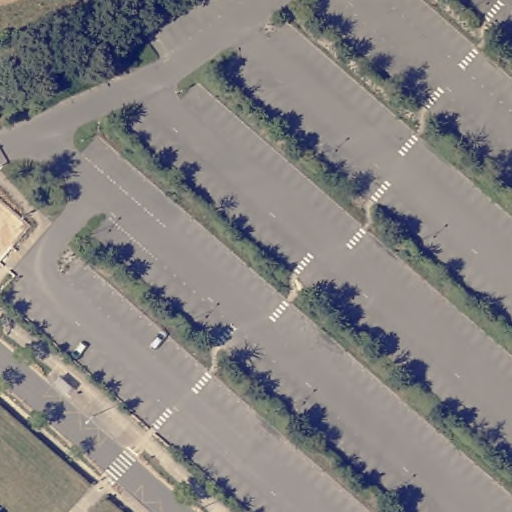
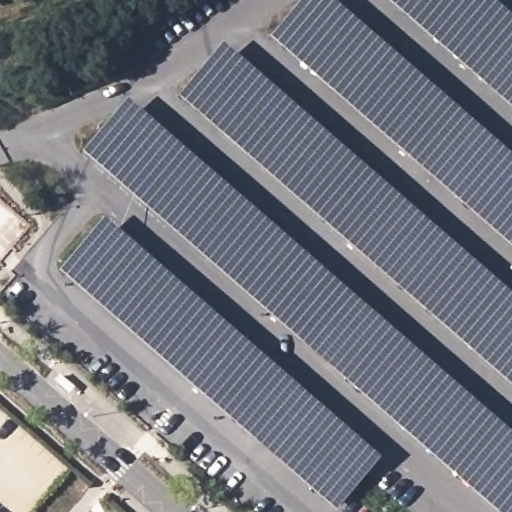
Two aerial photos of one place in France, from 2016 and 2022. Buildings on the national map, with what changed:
new [(512,158),(512,249),(270,38),(304,0),(330,0),(512,158)]
new [(512,17),(512,107),(389,0),(492,0),(512,17)]
new [(512,297),(512,387),(178,97),(224,46),(512,297)]
new [(512,436),(512,512),(496,512),(82,154),(128,102),(512,436)]
new [(106,221),(381,460),(336,512),(59,272),(106,221)]

